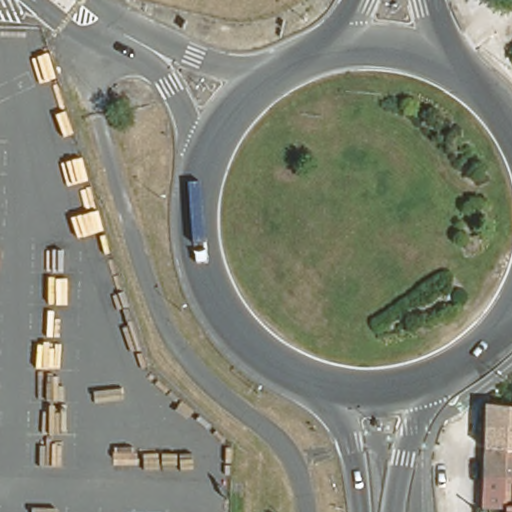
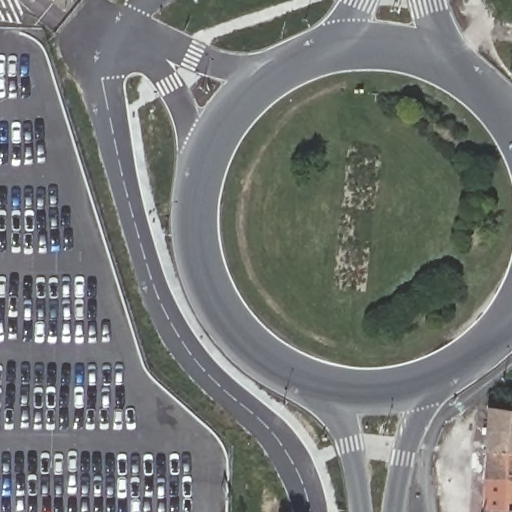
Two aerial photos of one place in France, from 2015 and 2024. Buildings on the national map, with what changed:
unchanged [(512,410),(512,512),(497,512),(480,511),(482,480),(483,451),(483,430),(484,409),(512,410)]

